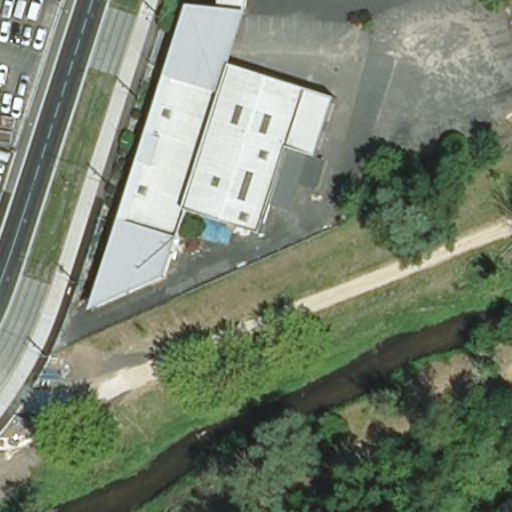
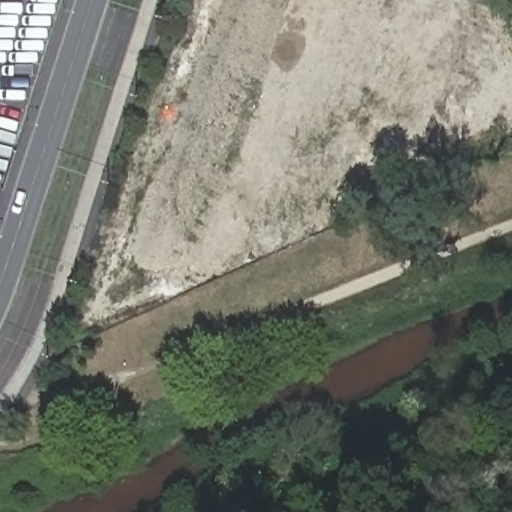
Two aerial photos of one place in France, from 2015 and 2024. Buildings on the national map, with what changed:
demolished [(231,63),(333,97),(313,156),(285,147),(258,230),(220,222),(188,209),(166,275),(89,310),(185,4),(220,9),(220,0),(247,0),(246,12),(231,63)]

